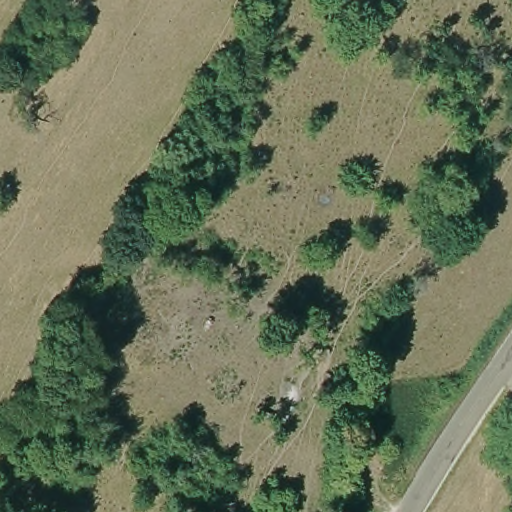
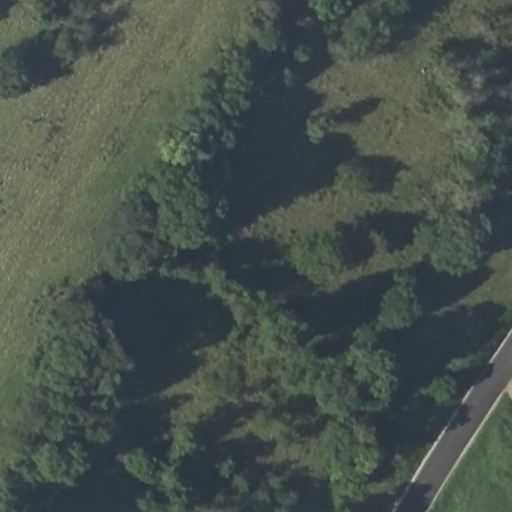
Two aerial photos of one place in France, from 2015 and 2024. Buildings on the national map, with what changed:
[]

